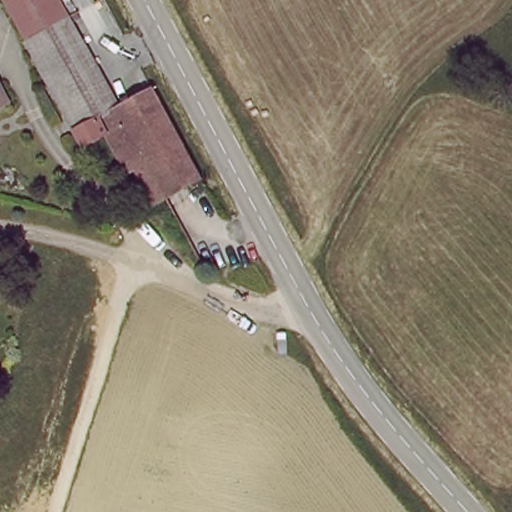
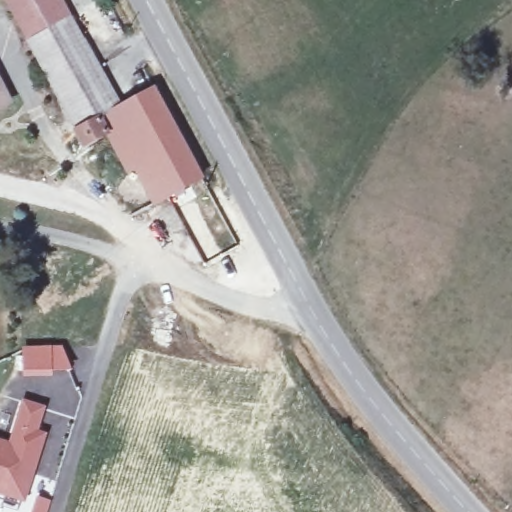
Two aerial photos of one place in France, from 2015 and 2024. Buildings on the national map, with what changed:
unchanged [(156,92),(206,181),(168,202),(147,164),(128,175),(100,124),(80,134),(7,0),(59,0),(120,115),(156,92)]
unchanged [(0,106),(0,84),(7,103),(0,106)]
new [(39,431),(47,432),(23,502),(0,494),(0,438),(10,441),(23,398),(46,406),(39,431)]

